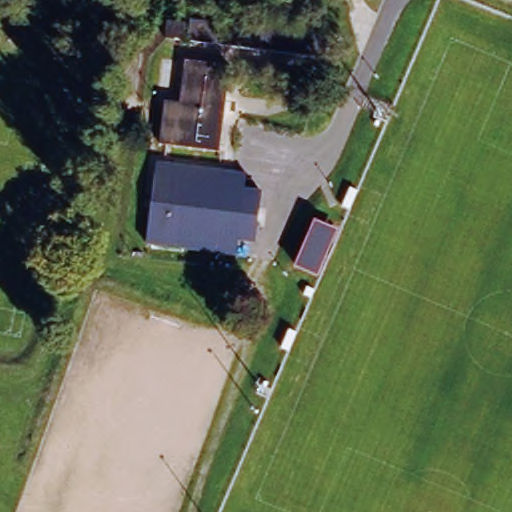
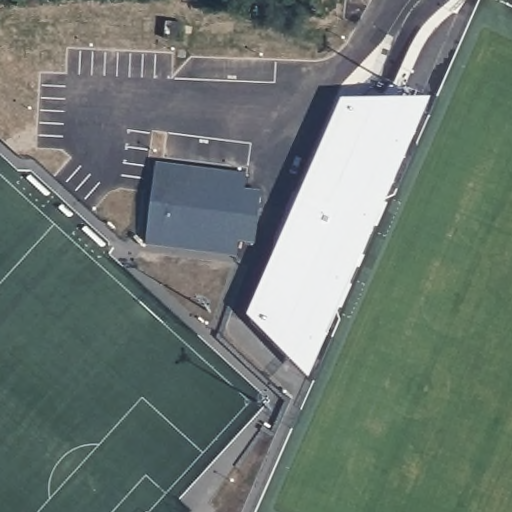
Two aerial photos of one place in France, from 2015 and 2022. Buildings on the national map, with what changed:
unchanged [(328,59),(165,39),(170,18),(330,36),(328,59)]
demolished [(148,47),(140,96),(120,92),(129,45),(148,47)]
unchanged [(230,66),(220,153),(158,146),(165,102),(176,103),(185,62),(230,66)]
unchanged [(176,64),(170,95),(156,94),(161,63),(176,64)]
new [(345,97),(422,105),(313,393),(252,313),(252,303),(345,97)]
unchanged [(242,175),(241,193),(258,195),(255,245),(236,243),(235,256),(146,248),(153,163),(242,175)]
demolished [(337,231),(317,278),(293,269),(313,222),(337,231)]

